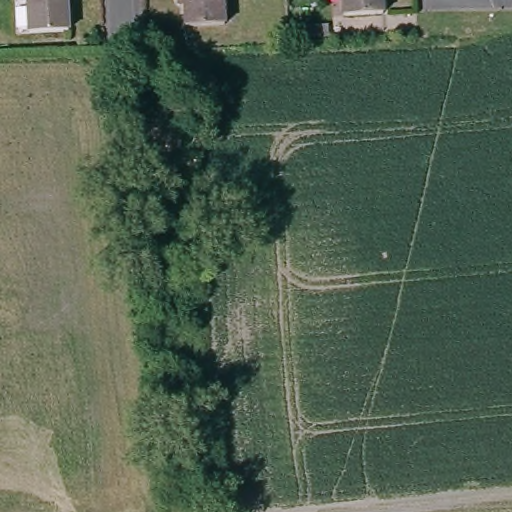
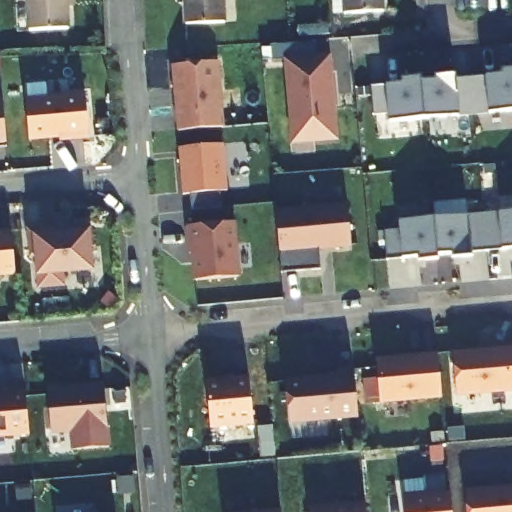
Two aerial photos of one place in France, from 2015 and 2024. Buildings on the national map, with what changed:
unchanged [(20,36),(19,0),(25,0),(66,0),(67,14),(58,14),(59,35),(20,36)]
unchanged [(224,27),(188,30),(187,9),(177,9),(177,0),(222,0),(224,27)]
unchanged [(340,19),(339,0),(377,0),(377,17),(340,19)]
new [(321,61),(322,77),(330,76),(332,100),(327,100),(328,111),(332,111),(335,144),(291,147),(283,64),(321,61)]
new [(216,65),(222,132),(177,135),(171,70),(216,65)]
new [(402,81),(402,79),(420,77),(420,80),(436,80),(435,77),(455,75),(485,74),(502,73),(502,69),(512,68),(512,108),(490,110),(460,113),(389,120),(387,111),(375,113),(372,85),(387,84),(402,81)]
new [(85,92),(89,137),(60,140),(60,136),(30,140),(26,96),(85,92)]
new [(2,104),(5,150),(0,151),(0,104),(2,104)]
new [(222,149),(225,195),(182,199),(177,152),(222,149)]
new [(347,210),(350,250),(318,253),(320,275),(280,278),(275,216),(347,210)]
new [(499,213),(512,212),(512,247),(503,247),(472,250),(472,256),(453,259),(453,255),(437,257),(437,260),(420,261),(418,255),(402,257),(399,222),(469,215),(499,213)]
new [(236,281),(193,285),(192,268),(194,265),(193,257),(188,257),(185,230),(232,227),(236,281)]
new [(55,230),(55,238),(73,236),(72,234),(90,232),(92,252),(90,252),(92,276),(61,278),(62,291),(38,293),(35,262),(28,263),(26,233),(55,230)]
new [(10,235),(14,279),(0,280),(0,236),(10,235)]
new [(512,396),(455,401),(452,357),(512,352),(512,396)]
new [(437,358),(440,402),(379,408),(375,365),(437,358)]
new [(337,381),(336,376),(352,375),(357,422),(287,428),(284,385),(337,381)]
new [(247,381),(252,428),(208,431),(205,385),(247,381)]
new [(65,391),(66,395),(73,394),(72,391),(102,388),(108,451),(72,455),(70,435),(50,437),(46,393),(65,391)]
new [(24,396),(27,438),(0,441),(0,398),(24,396)]
new [(512,512),(465,512),(463,496),(512,491),(512,512)]
new [(451,512),(403,512),(402,500),(450,496),(451,512)]
new [(367,512),(311,512),(310,507),(366,503),(367,512)]

